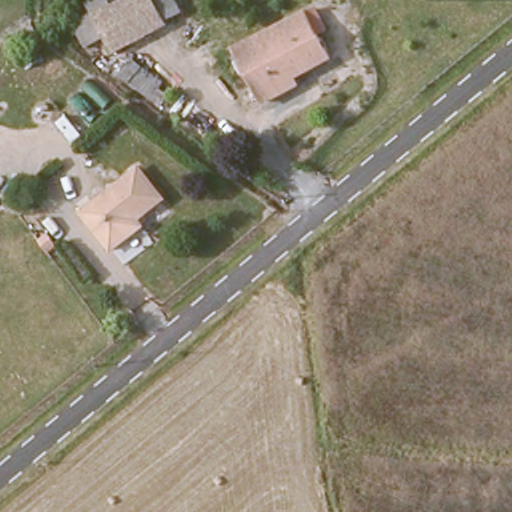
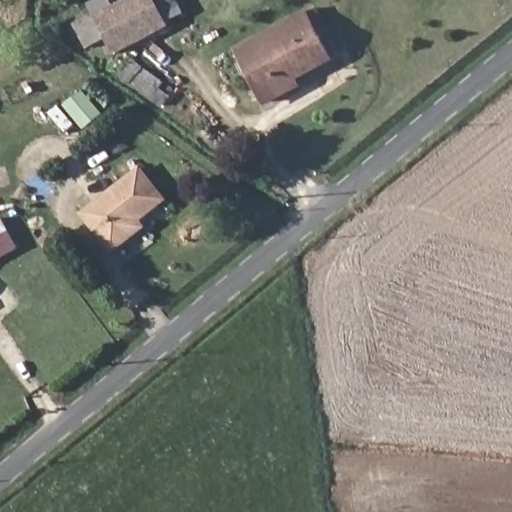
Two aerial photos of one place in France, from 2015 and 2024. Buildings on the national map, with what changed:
unchanged [(104,37),(83,46),(72,24),(95,12),(91,0),(113,0),(114,1),(118,0),(180,0),(185,12),(165,22),(167,26),(113,54),(104,37)]
unchanged [(295,75),(299,82),(266,99),(238,49),(305,11),(331,55),(295,75)]
unchanged [(162,198),(135,216),(140,224),(110,247),(82,211),(139,166),(162,198)]
new [(2,219),(18,253),(0,261),(0,220),(2,219)]

